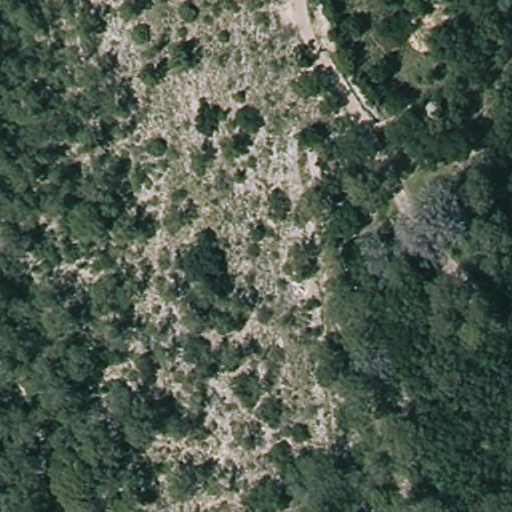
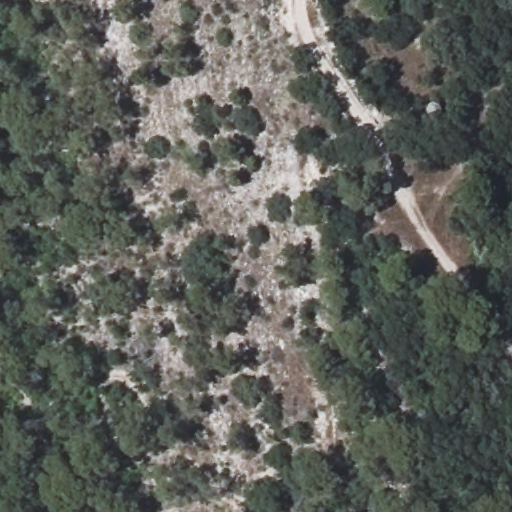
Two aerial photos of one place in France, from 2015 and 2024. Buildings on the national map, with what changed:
unchanged [(489,161),(497,170),(497,186),(488,196),(471,195),(463,185),(463,170),(472,161),(489,161)]

